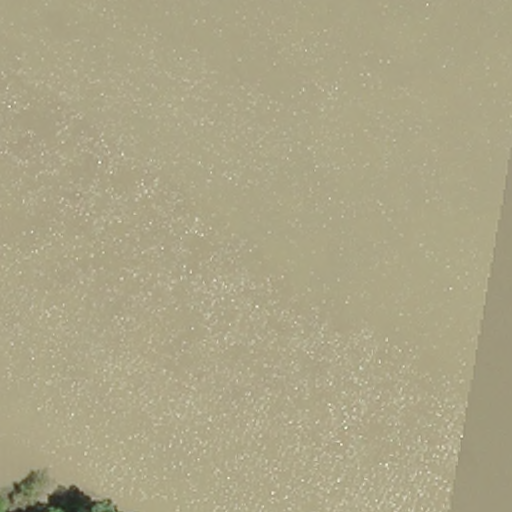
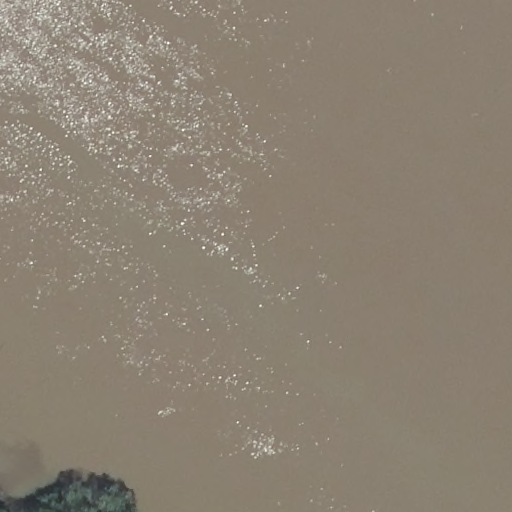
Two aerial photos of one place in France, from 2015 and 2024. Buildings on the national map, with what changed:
[]

